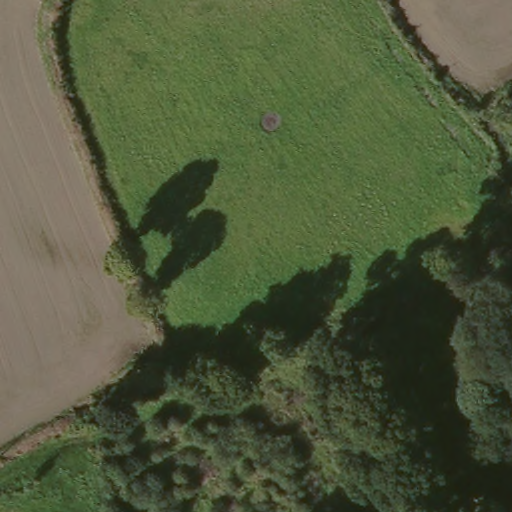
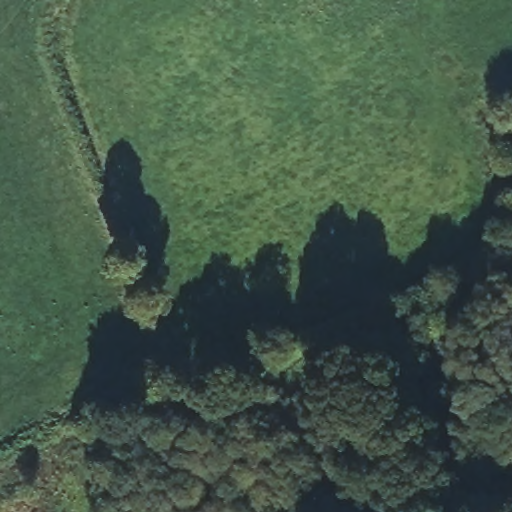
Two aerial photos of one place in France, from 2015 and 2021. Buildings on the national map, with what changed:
[]

